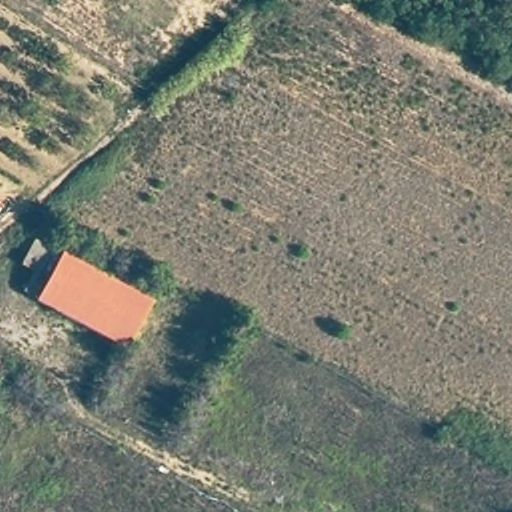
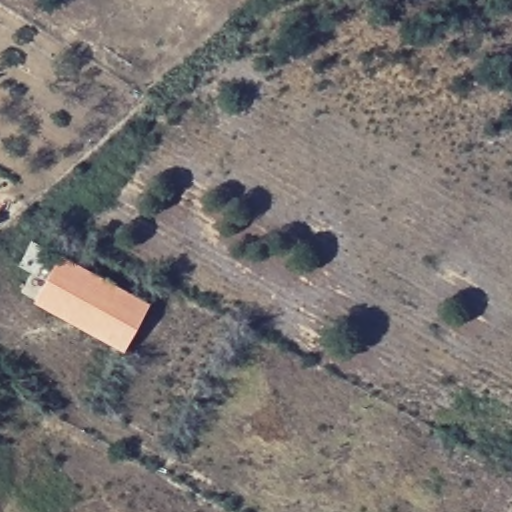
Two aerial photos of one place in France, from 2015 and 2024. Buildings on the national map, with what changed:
unchanged [(152,306),(128,352),(38,303),(40,300),(26,293),(37,274),(29,270),(42,247),(62,260),(62,258),(152,306)]

